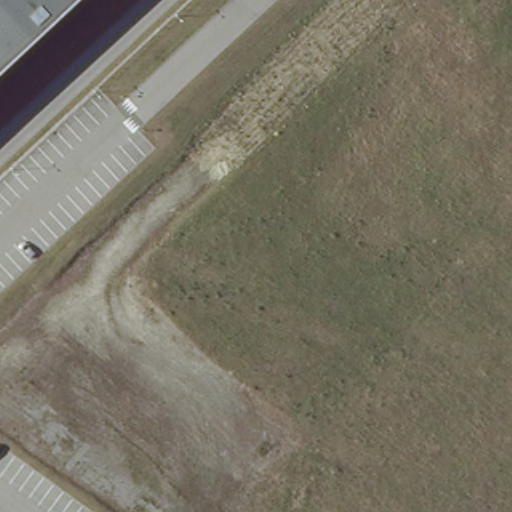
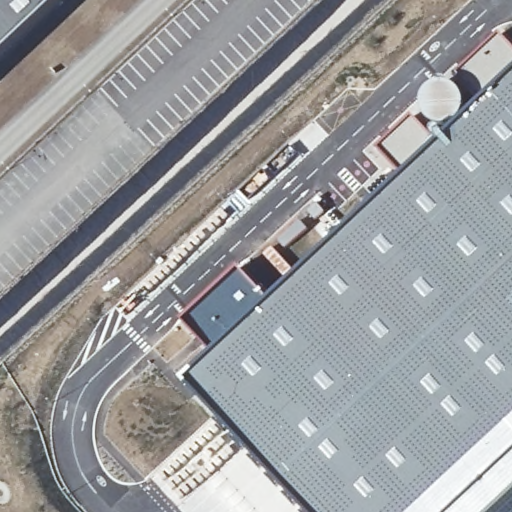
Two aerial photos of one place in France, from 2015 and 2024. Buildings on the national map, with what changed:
unchanged [(0,0),(68,0),(0,66),(0,0)]
new [(502,34),(512,45),(512,81),(486,103),(483,100),(480,103),(469,91),(466,94),(456,81),(455,79),(502,34)]
new [(225,350),(279,298),(325,255),(387,202),(410,179),(399,169),(434,134),(440,129),(444,130),(451,139),(467,124),(486,103),(512,81),(512,512),(313,512),(236,432),(235,433),(187,384),(192,379),(225,350)]
new [(424,99),(428,93),(435,87),(443,84),(456,81),(466,94),(469,103),(468,113),(457,124),(444,130),(440,129),(431,124),(425,117),(423,108),(424,99)]
new [(416,115),(434,134),(399,169),(380,149),(416,115)]
new [(240,265),(265,290),(208,349),(183,322),(240,265)]
new [(265,290),(269,294),(283,279),(286,283),(276,293),(279,298),(225,350),(220,346),(213,353),(208,349),(265,290)]
new [(245,446),(269,474),(305,512),(180,512),(175,507),(245,446)]

